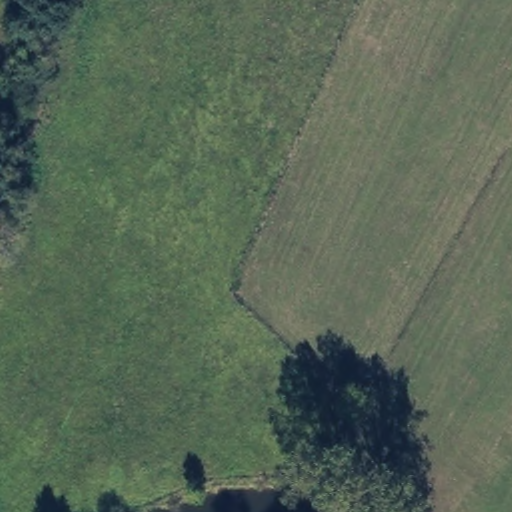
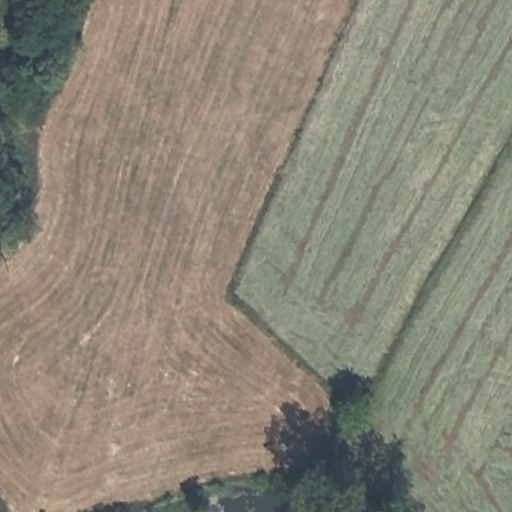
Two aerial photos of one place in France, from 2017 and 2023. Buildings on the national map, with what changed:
[]

